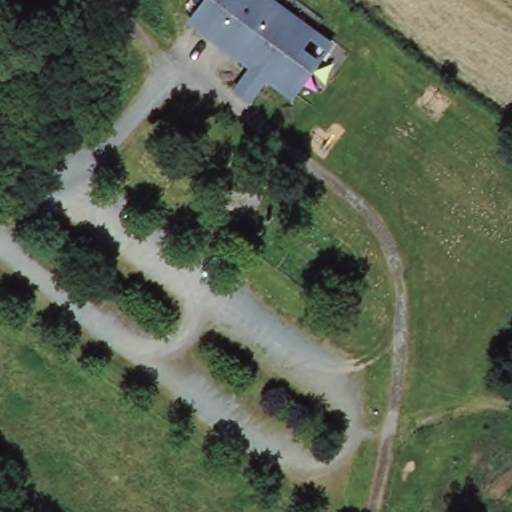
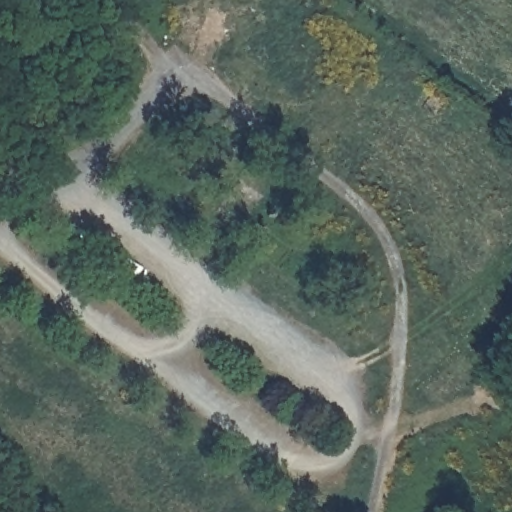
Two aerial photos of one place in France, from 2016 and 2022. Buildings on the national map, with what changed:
demolished [(278,88),(268,79),(261,87),(250,77),(255,71),(209,32),(235,0),(274,0),(320,37),(278,88)]

